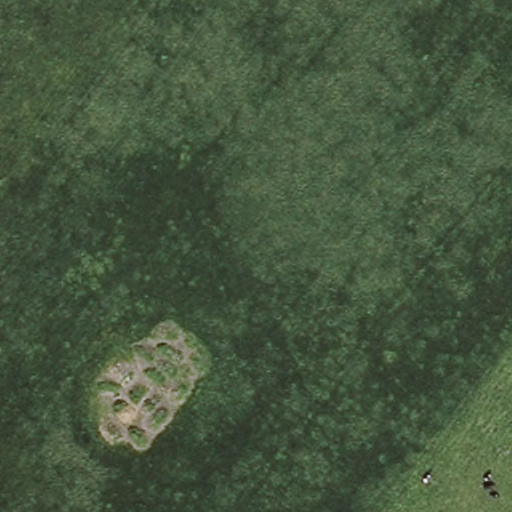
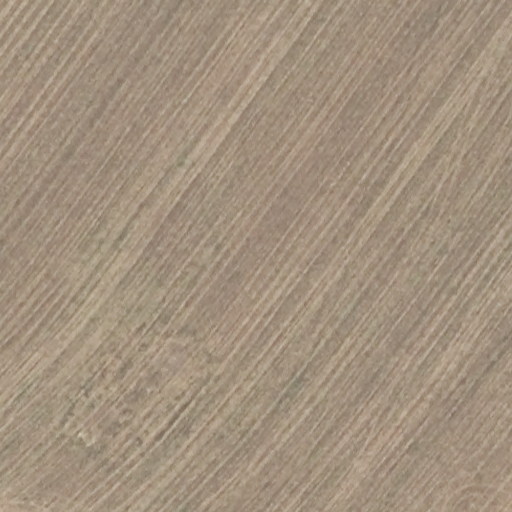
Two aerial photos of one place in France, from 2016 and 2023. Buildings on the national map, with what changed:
[]

